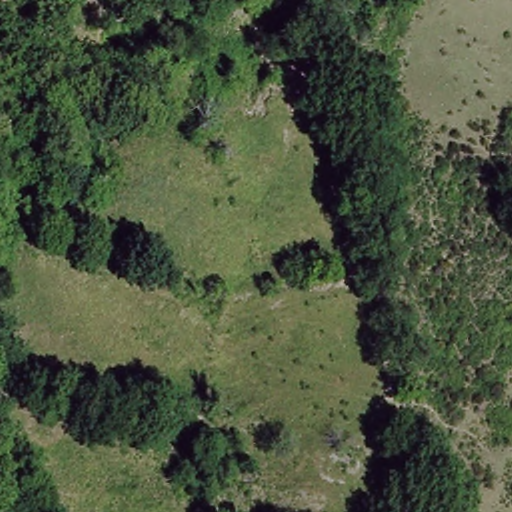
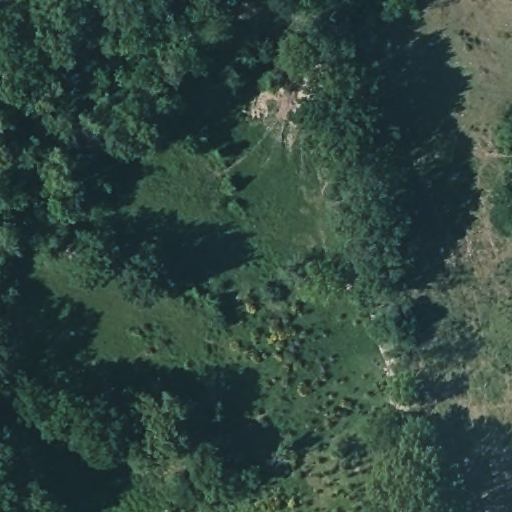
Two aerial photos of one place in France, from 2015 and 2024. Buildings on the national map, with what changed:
[]

